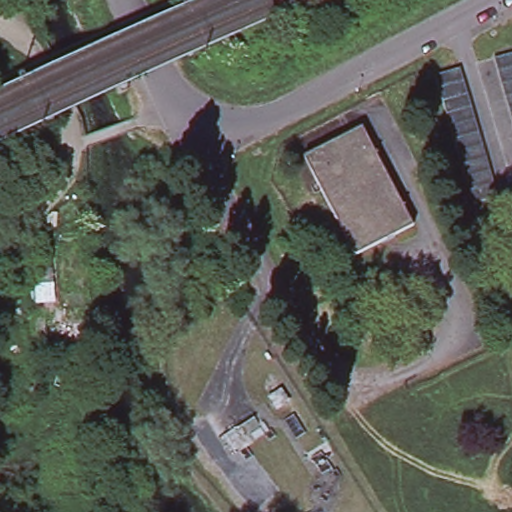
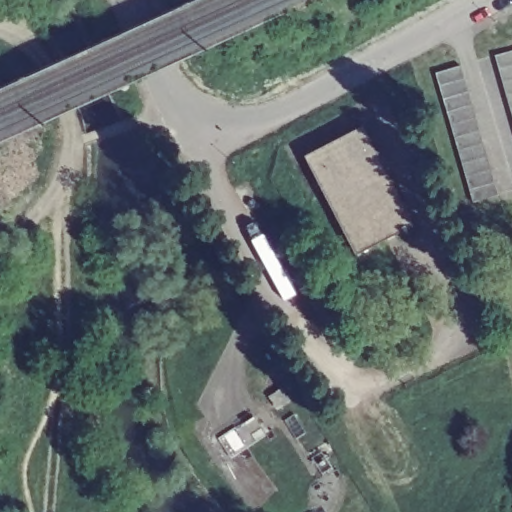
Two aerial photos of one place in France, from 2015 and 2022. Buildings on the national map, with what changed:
unchanged [(512,49),(512,118),(494,55),(512,49)]
unchanged [(434,71),(459,64),(496,191),(472,199),(434,71)]
unchanged [(356,256),(304,156),(361,127),(413,225),(356,256)]
unchanged [(48,321),(76,319),(78,344),(51,345),(48,321)]
unchanged [(266,434),(226,452),(219,436),(256,415),(266,434)]
unchanged [(310,512),(311,512),(309,497),(309,489),(311,481),(329,470),(339,473),(337,512),(310,512)]

